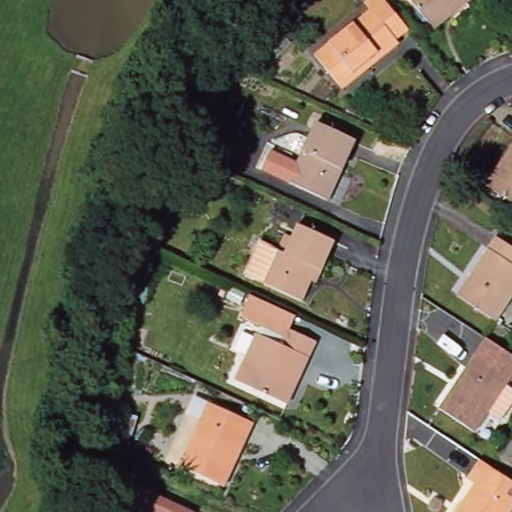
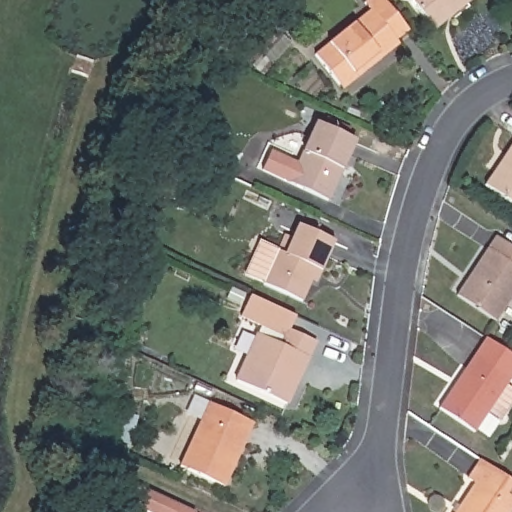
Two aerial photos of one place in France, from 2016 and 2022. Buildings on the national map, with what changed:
unchanged [(315,53),(370,7),(366,1),(368,0),(386,0),(396,13),(408,29),(396,38),(399,41),(368,69),(342,88),(338,83),(315,53)]
unchanged [(414,0),(468,0),(434,26),(414,0)]
unchanged [(329,200),(262,166),(272,145),(302,160),(319,122),(357,140),(329,200)]
unchanged [(488,181),(512,148),(512,197),(488,181)]
unchanged [(309,278),(300,299),(244,272),(259,241),(276,250),(277,247),(284,250),(296,221),(333,238),(320,267),(315,280),(309,278)]
unchanged [(501,319),(462,293),(500,234),(512,242),(512,302),(501,319)]
unchanged [(277,305),(271,320),(298,332),(269,395),(218,371),(240,325),(264,335),(267,328),(224,307),(234,285),(277,305)]
unchanged [(510,373),(505,380),(512,384),(512,398),(501,416),(488,408),(464,446),(427,422),(475,351),(510,373)]
unchanged [(226,484),(183,463),(213,399),(255,420),(226,484)]
unchanged [(512,477),(512,512),(463,512),(482,484),(474,479),(486,461),(512,477)]
unchanged [(130,479),(193,508),(192,512),(155,512),(122,497),(130,479)]

